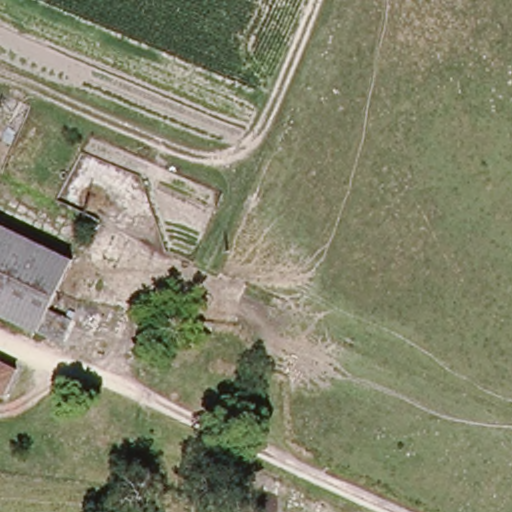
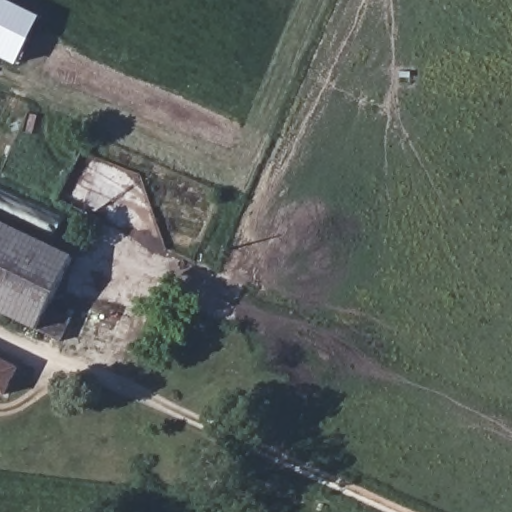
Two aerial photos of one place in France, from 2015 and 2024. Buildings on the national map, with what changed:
new [(41,17),(17,67),(0,58),(0,0),(5,0),(41,17)]
unchanged [(63,308),(84,312),(72,343),(46,333),(42,340),(0,319),(0,233),(63,263),(57,276),(45,301),(63,308)]
unchanged [(4,392),(0,390),(0,359),(16,366),(4,392)]

